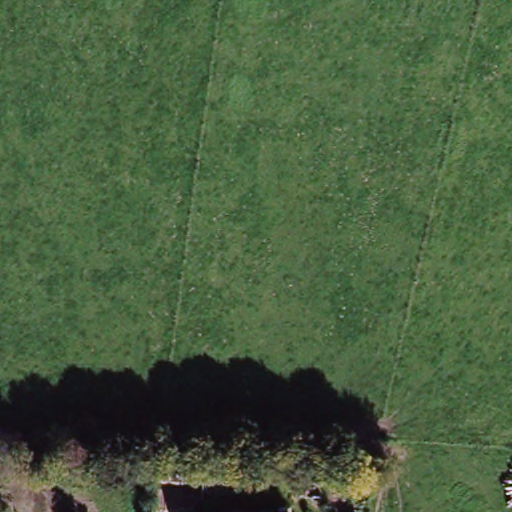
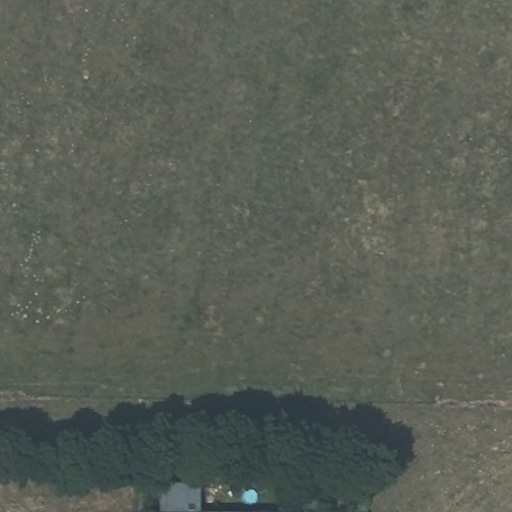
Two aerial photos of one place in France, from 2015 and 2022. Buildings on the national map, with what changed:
unchanged [(184,512),(184,510),(240,512),(184,512)]

